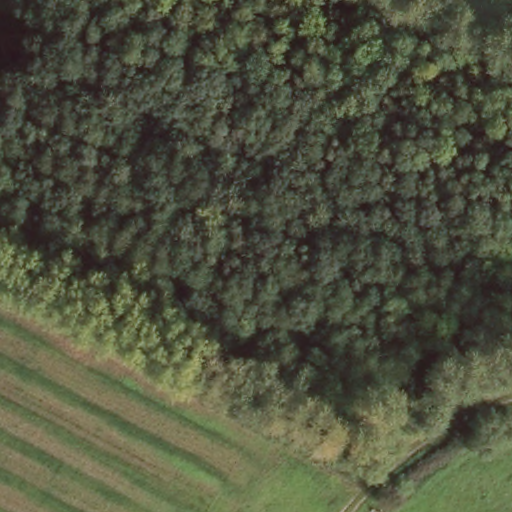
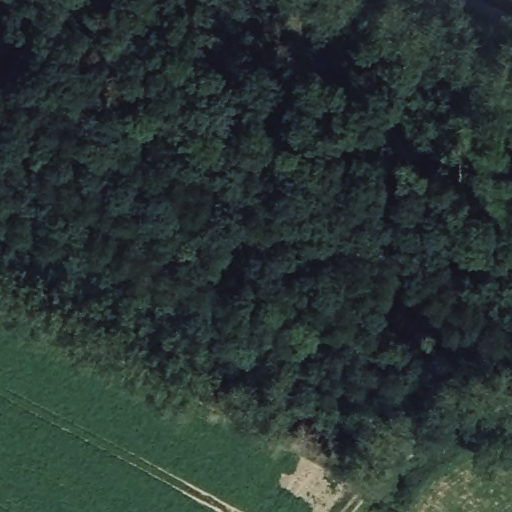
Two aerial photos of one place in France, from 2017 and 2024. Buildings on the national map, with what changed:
unchanged [(239,329),(255,336),(248,351),(233,345),(239,329)]

